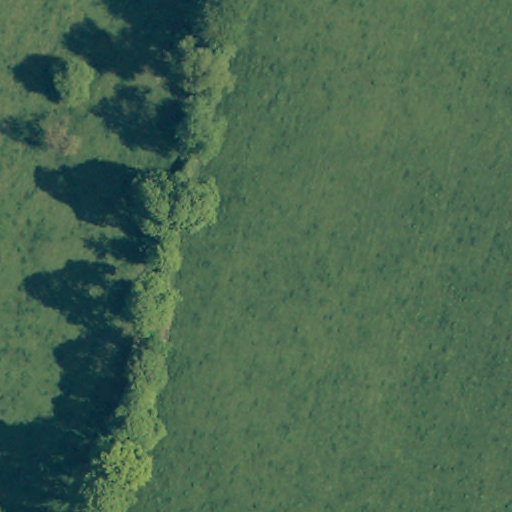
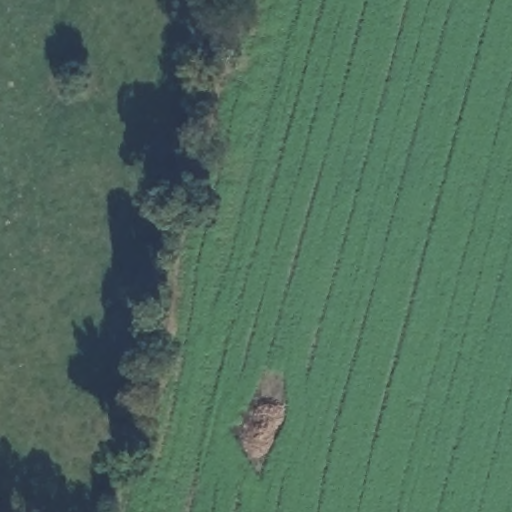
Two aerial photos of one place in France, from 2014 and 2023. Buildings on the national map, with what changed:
[]

